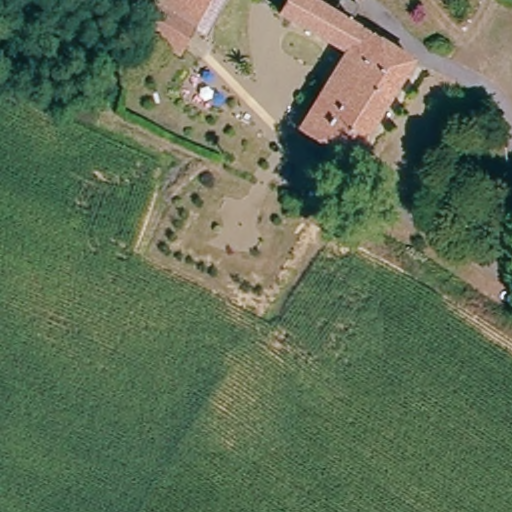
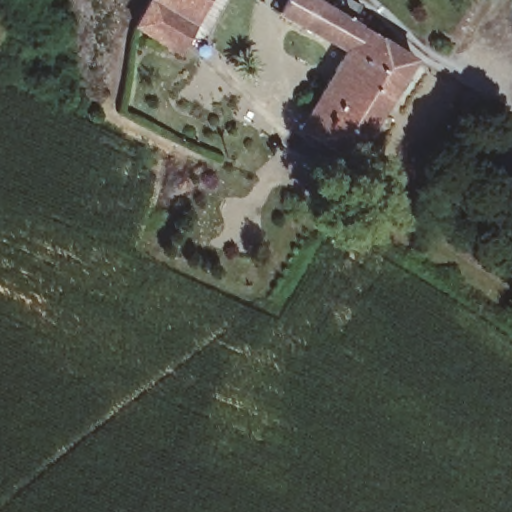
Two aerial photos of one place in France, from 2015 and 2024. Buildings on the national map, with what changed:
unchanged [(214,0),(199,29),(184,57),(139,31),(156,0),(214,0)]
unchanged [(234,0),(214,39),(199,29),(214,0),(234,0)]
unchanged [(286,15),(294,0),(320,0),(318,4),(326,8),(336,15),(345,0),(346,0),(362,10),(353,26),(414,64),(356,165),(303,131),(348,53),(286,15)]

